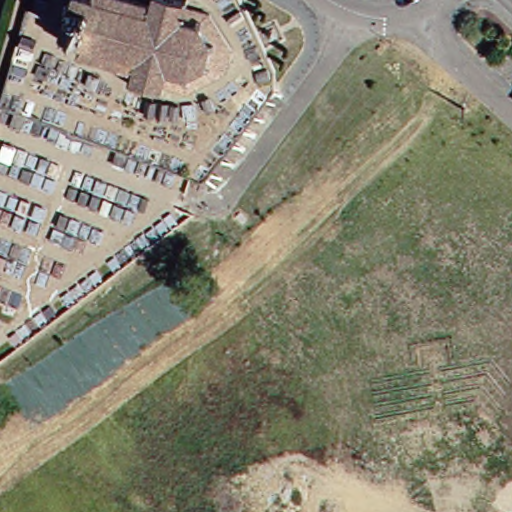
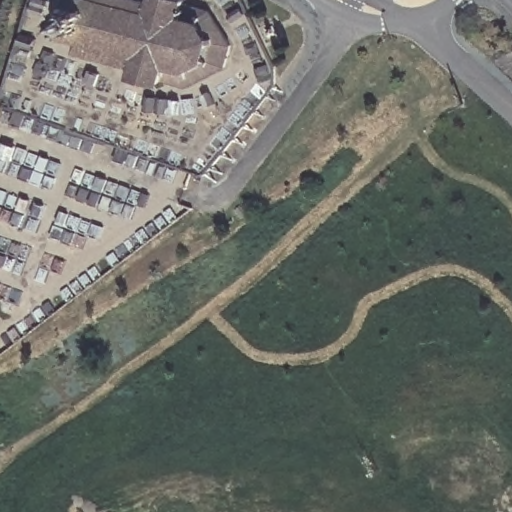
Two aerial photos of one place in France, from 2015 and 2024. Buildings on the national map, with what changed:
unchanged [(219,65),(180,81),(159,76),(154,80),(129,72),(131,63),(76,46),(79,39),(64,34),(60,30),(61,5),(65,0),(147,0),(179,0),(180,4),(202,11),(225,42),(219,65)]

